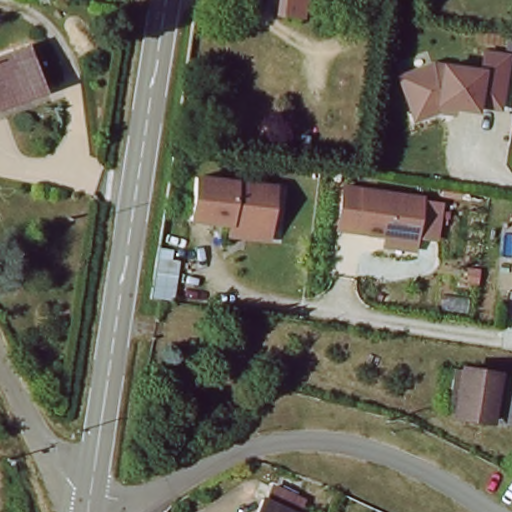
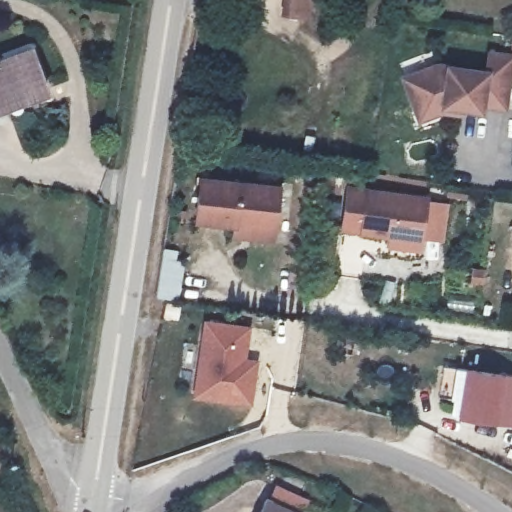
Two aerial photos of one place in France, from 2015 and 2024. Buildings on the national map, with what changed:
unchanged [(311,18),(282,16),(284,0),(314,0),(311,18)]
unchanged [(444,61),(444,64),(486,69),(489,48),(512,52),(512,96),(509,114),(484,110),(483,116),(445,113),(416,123),(400,77),(444,61)]
unchanged [(45,89),(0,107),(0,61),(30,49),(45,89)]
unchanged [(237,236),(238,226),(196,223),(201,181),(279,187),(276,230),(275,240),(237,236)]
unchanged [(391,244),(392,234),(343,228),(348,185),(428,196),(423,238),(422,248),(391,244)]
new [(256,323),(251,361),(263,362),(258,402),(198,398),(208,318),(256,323)]
unchanged [(509,420),(451,411),(457,370),(512,377),(512,392),(509,420)]
unchanged [(300,512),(260,512),(266,499),(300,512)]

